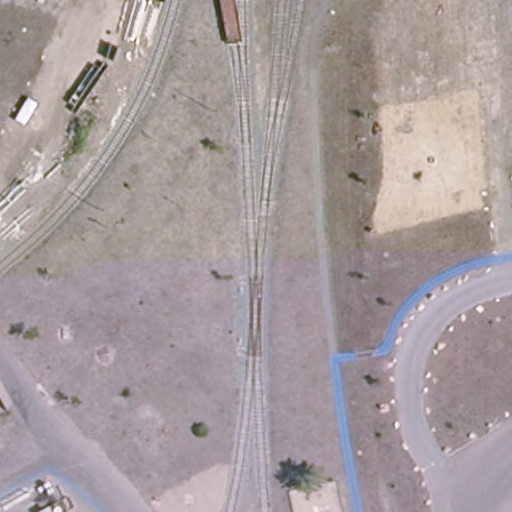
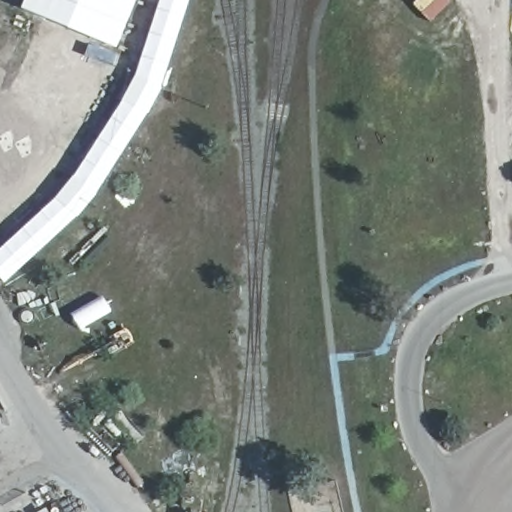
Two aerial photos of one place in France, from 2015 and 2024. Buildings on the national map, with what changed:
new [(22,10),(26,0),(132,0),(112,47),(22,10)]

